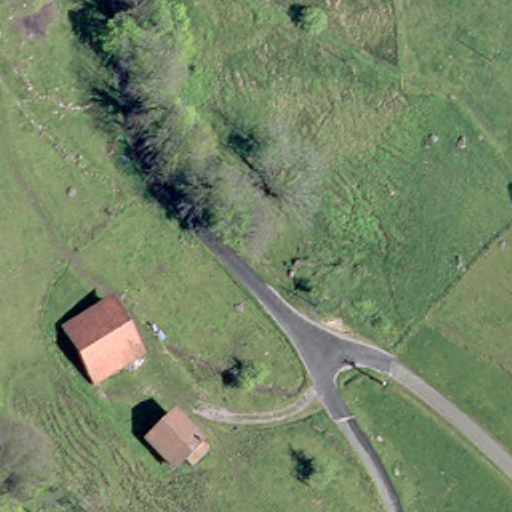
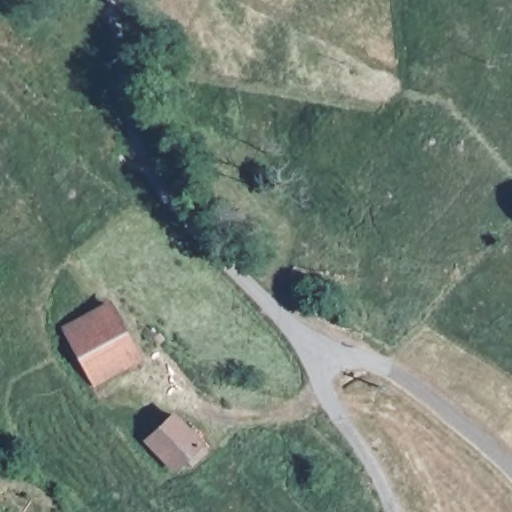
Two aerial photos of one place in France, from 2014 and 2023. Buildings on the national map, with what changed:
unchanged [(105,300),(132,351),(89,376),(60,323),(105,300)]
unchanged [(165,415),(198,442),(186,457),(178,452),(168,462),(143,438),(165,415)]

